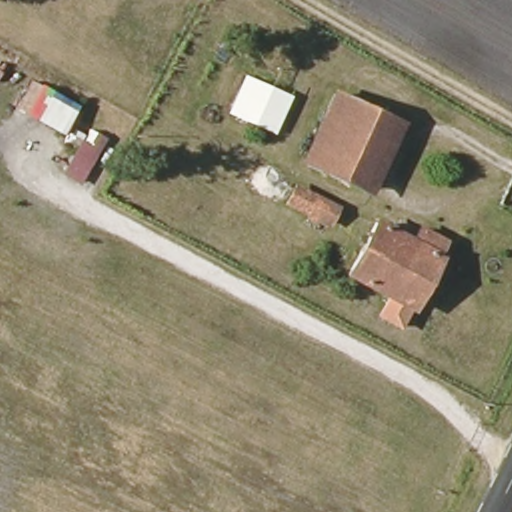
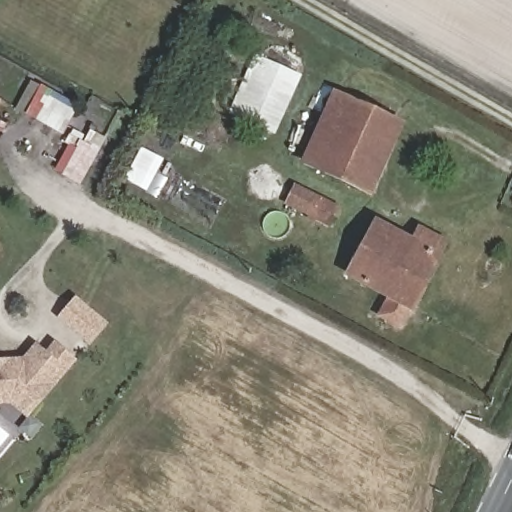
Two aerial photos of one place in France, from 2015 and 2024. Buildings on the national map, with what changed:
new [(246,73),(255,54),(302,74),(293,95),(246,73)]
unchanged [(277,134),(228,112),(246,73),(293,95),(277,134)]
unchanged [(64,135),(15,108),(32,79),(80,106),(64,135)]
unchanged [(327,166),(310,156),(347,91),(365,101),(327,166)]
unchanged [(366,188),(327,166),(365,101),(403,123),(366,188)]
unchanged [(107,140),(80,186),(61,175),(87,129),(107,140)]
unchanged [(346,201),(333,229),(308,215),(323,189),(346,201)]
unchanged [(437,248),(441,250),(414,301),(411,299),(401,318),(381,308),(391,288),(350,267),(377,216),(390,223),(398,207),(446,232),(437,248)]
new [(76,295),(109,323),(90,346),(57,318),(76,295)]
new [(28,418),(12,403),(0,404),(0,359),(22,357),(37,342),(45,350),(55,339),(78,360),(28,418)]

